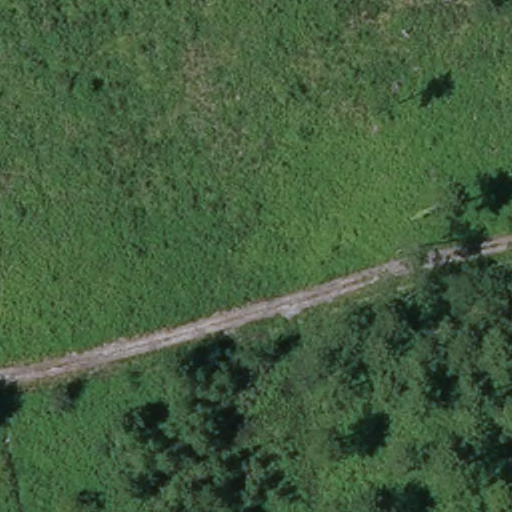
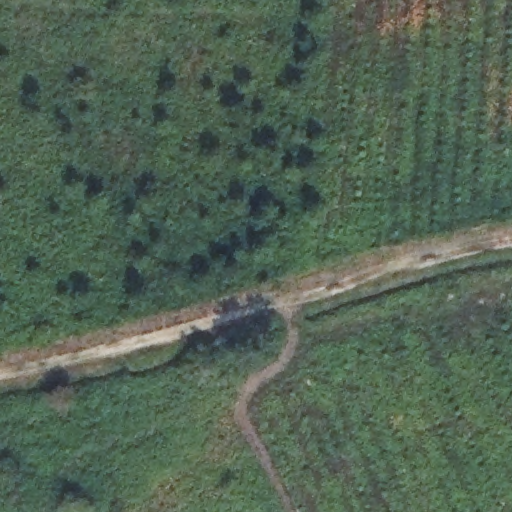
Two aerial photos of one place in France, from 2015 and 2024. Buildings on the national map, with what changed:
[]

